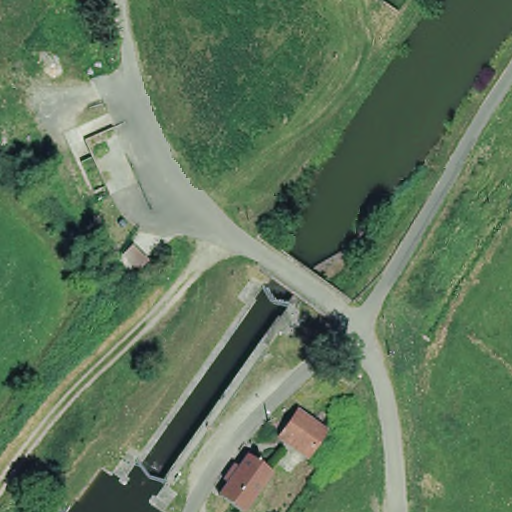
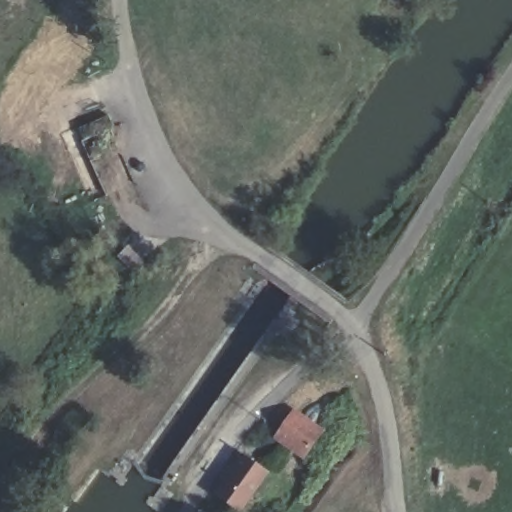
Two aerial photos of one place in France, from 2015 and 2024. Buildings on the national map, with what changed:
unchanged [(306,454),(280,436),(295,414),(321,432),(306,454)]
unchanged [(229,490),(224,484),(236,468),(241,471),(249,460),(271,474),(247,512),(237,512),(221,502),(229,490)]

